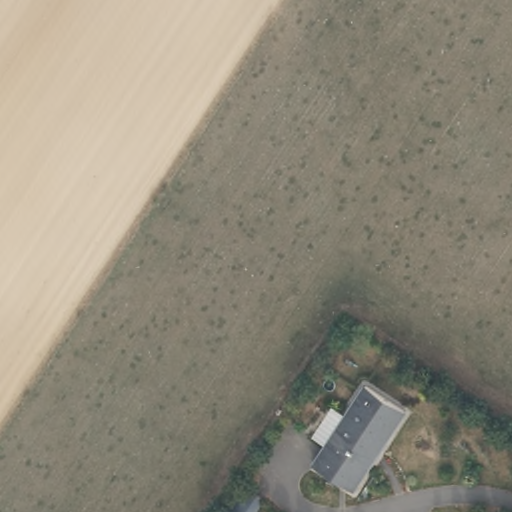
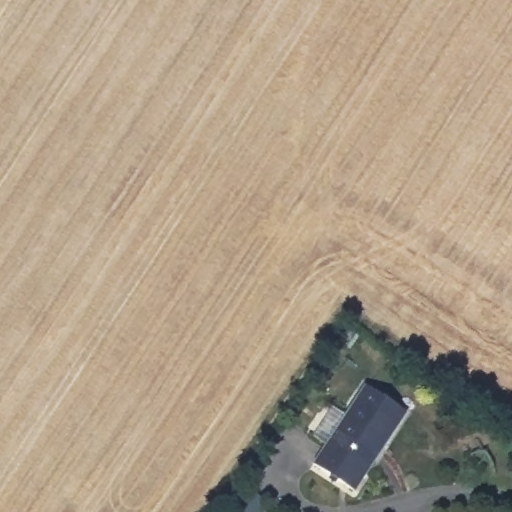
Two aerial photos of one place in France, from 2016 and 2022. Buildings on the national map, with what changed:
unchanged [(311,464),(364,385),(404,412),(350,489),(311,464)]
unchanged [(227,508),(233,512),(224,512),(227,508)]

